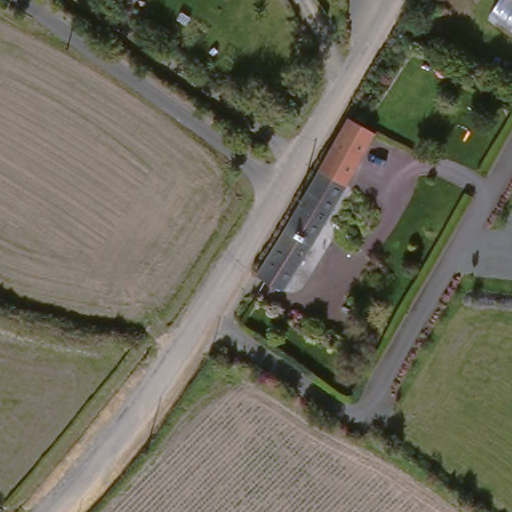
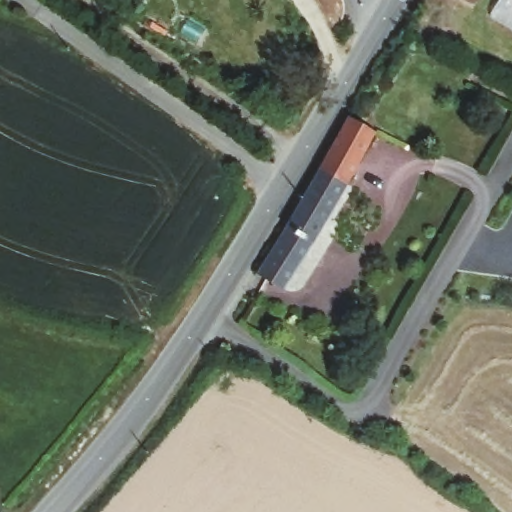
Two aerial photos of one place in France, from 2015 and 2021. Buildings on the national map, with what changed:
unchanged [(344,185),(317,169),(346,119),(389,150),(361,200),(342,189),(344,185)]
unchanged [(279,294),(254,278),(317,169),(344,185),(342,189),(279,294)]
unchanged [(314,335),(323,324),(341,337),(333,347),(314,335)]

